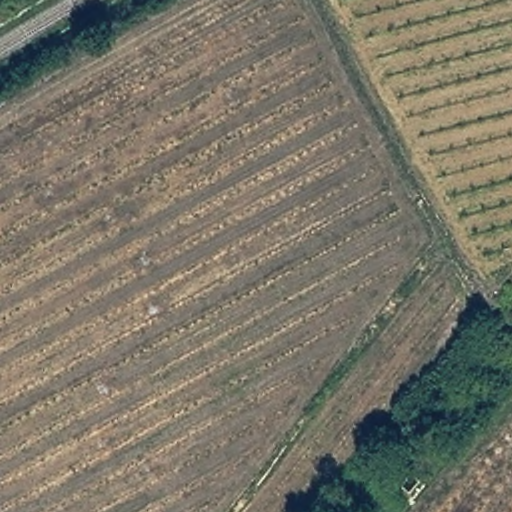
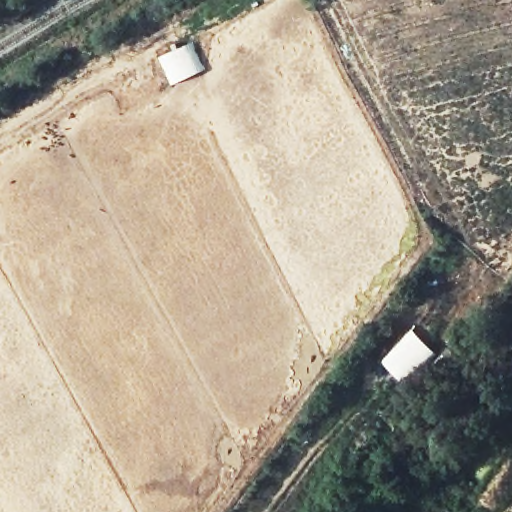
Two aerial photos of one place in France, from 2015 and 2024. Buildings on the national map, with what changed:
new [(170,85),(158,57),(190,42),(202,69),(170,85)]
new [(410,385),(383,361),(412,329),(438,351),(410,385)]

